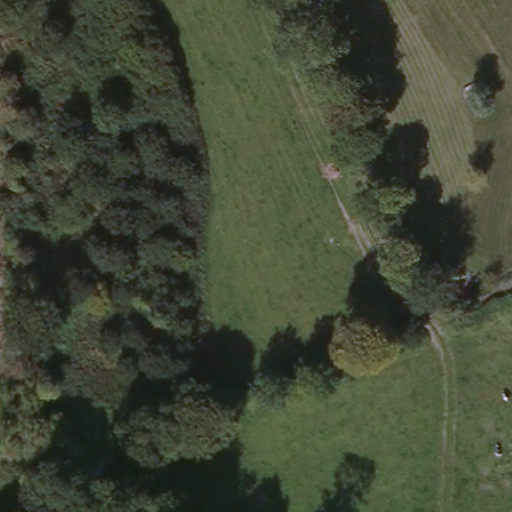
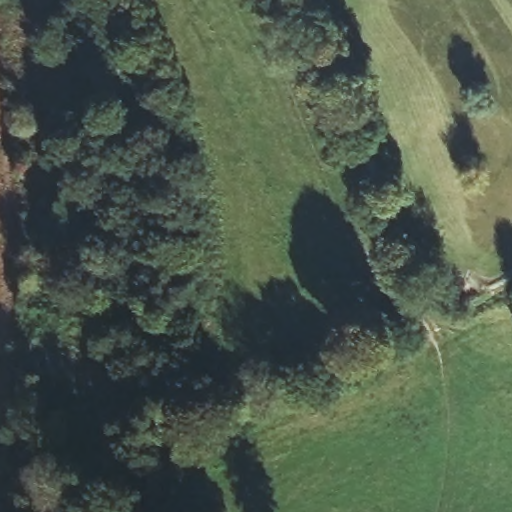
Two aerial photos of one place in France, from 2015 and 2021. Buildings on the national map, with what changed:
[]

